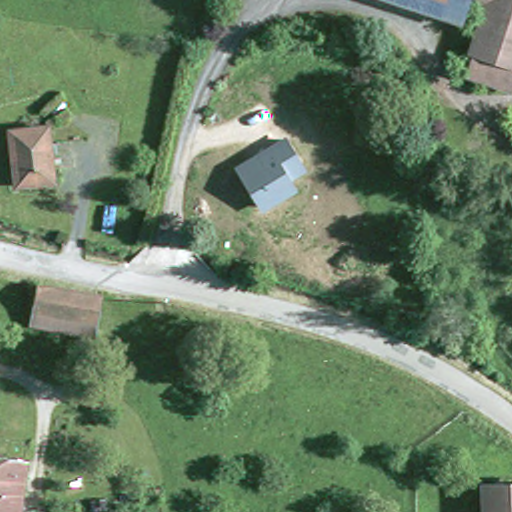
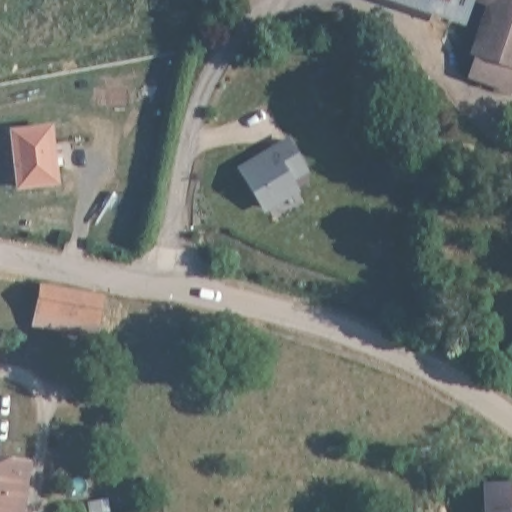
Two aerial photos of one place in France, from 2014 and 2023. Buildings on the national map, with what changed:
unchanged [(432,0),(444,4),(439,17),(388,0),(432,0)]
unchanged [(444,4),(432,0),(489,0),(484,16),(444,4)]
unchanged [(509,99),(465,84),(472,61),(470,60),(484,16),(489,0),(512,0),(512,88),(509,99)]
unchanged [(45,133),(52,187),(15,192),(7,138),(45,133)]
unchanged [(304,173),(289,181),(295,191),(259,210),(234,165),(285,136),(304,173)]
unchanged [(30,323),(39,284),(98,294),(92,333),(80,332),(30,323)]
unchanged [(0,465),(27,468),(22,512),(0,512),(0,465)]
unchanged [(487,488),(512,487),(512,512),(488,512),(487,488)]

